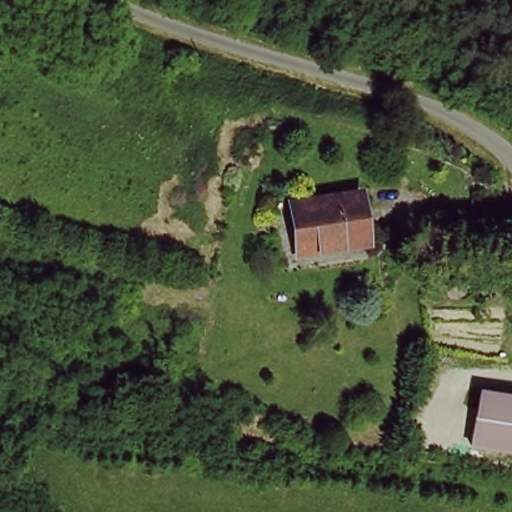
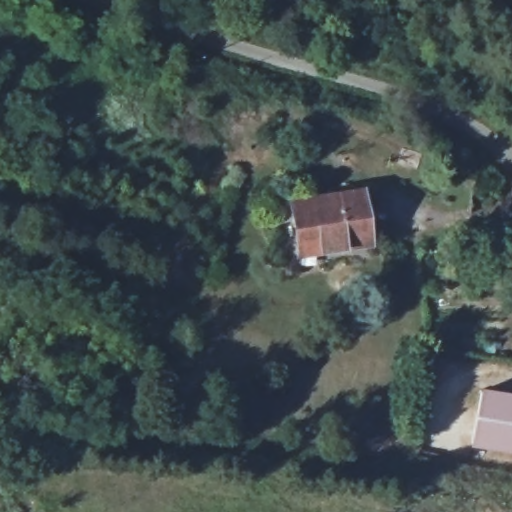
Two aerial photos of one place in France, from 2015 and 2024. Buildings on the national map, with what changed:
unchanged [(300,248),(289,208),(354,190),(369,241),(345,247),(303,260),(300,248)]
unchanged [(482,388),(512,394),(512,451),(470,443),(482,388)]

